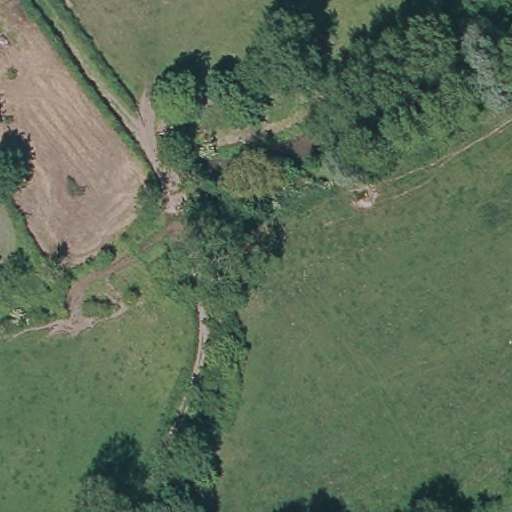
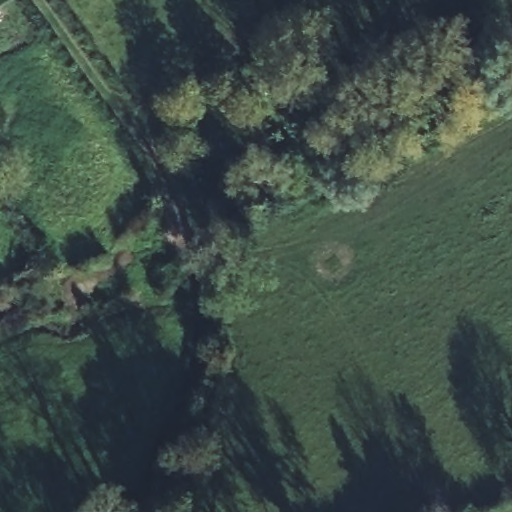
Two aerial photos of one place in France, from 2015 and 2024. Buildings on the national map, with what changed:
unchanged [(261,94),(236,106),(229,91),(240,86),(254,79),(261,94)]

